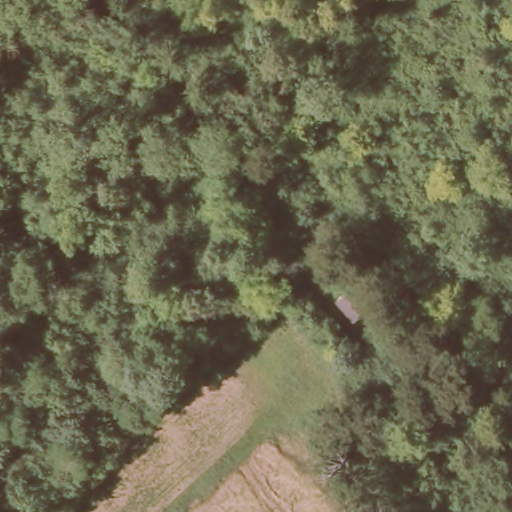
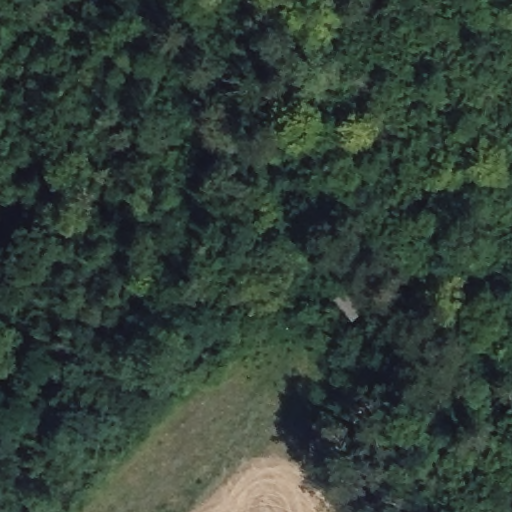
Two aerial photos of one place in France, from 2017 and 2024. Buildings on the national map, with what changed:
unchanged [(368,301),(347,318),(330,298),(350,281),(368,301)]

